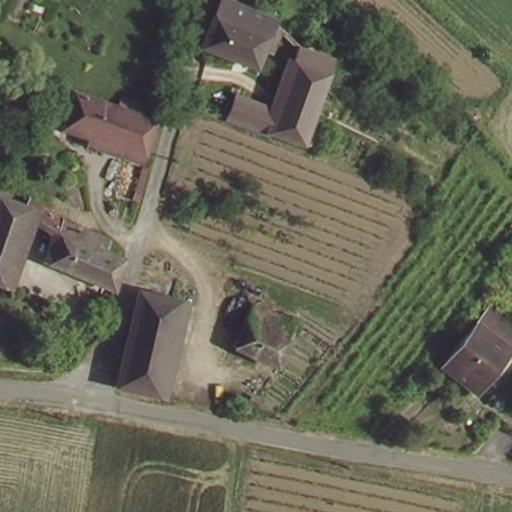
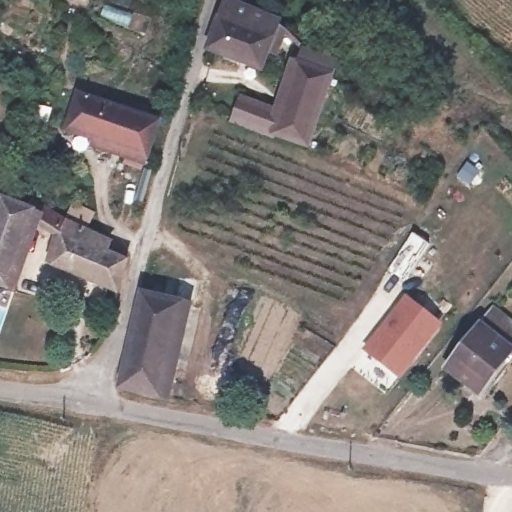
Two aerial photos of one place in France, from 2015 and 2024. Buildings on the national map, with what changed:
unchanged [(281,54),(260,45),(253,65),(207,49),(223,3),(270,19),(291,27),(281,54)]
unchanged [(303,46),(336,55),(330,74),(303,150),(269,139),(279,109),(296,63),(303,46)]
unchanged [(156,124),(142,165),(63,138),(77,96),(156,124)]
unchanged [(269,139),(233,128),(243,99),(279,109),(269,139)]
unchanged [(11,291),(0,287),(0,203),(35,215),(32,225),(11,291)]
unchanged [(68,253),(32,225),(35,215),(38,208),(80,222),(68,253)]
unchanged [(80,222),(80,219),(95,228),(110,235),(109,239),(132,249),(118,298),(59,279),(68,253),(80,222)]
new [(399,379),(361,349),(405,295),(443,324),(399,379)]
unchanged [(191,399),(143,390),(164,297),(212,307),(191,399)]
unchanged [(486,392),(477,385),(474,389),(445,367),(480,327),(494,309),(512,323),(512,348),(511,349),(512,351),(512,361),(486,392)]
unchanged [(254,316),(296,328),(283,369),(240,356),(254,316)]

